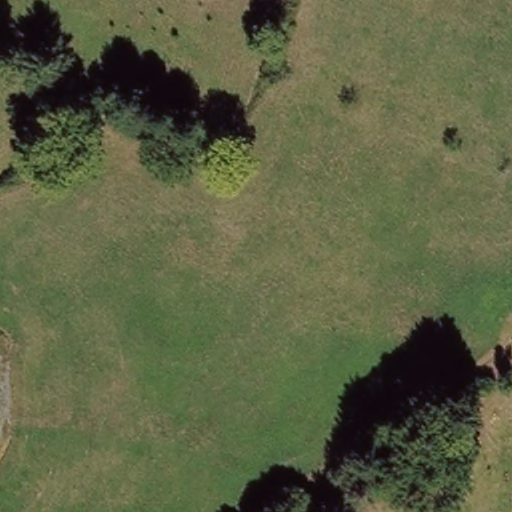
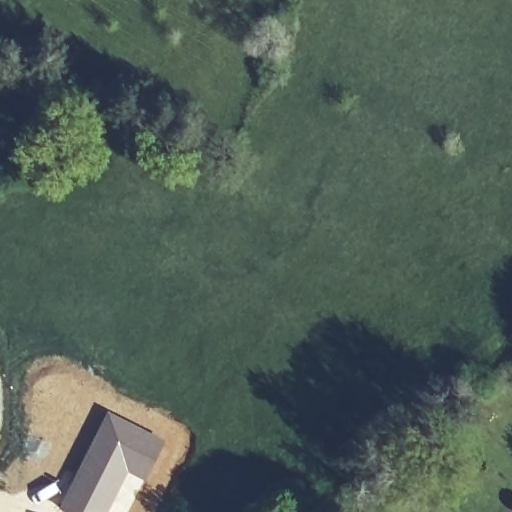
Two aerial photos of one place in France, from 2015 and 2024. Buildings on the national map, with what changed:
new [(106,410),(165,440),(128,512),(66,512),(57,508),(106,410)]

